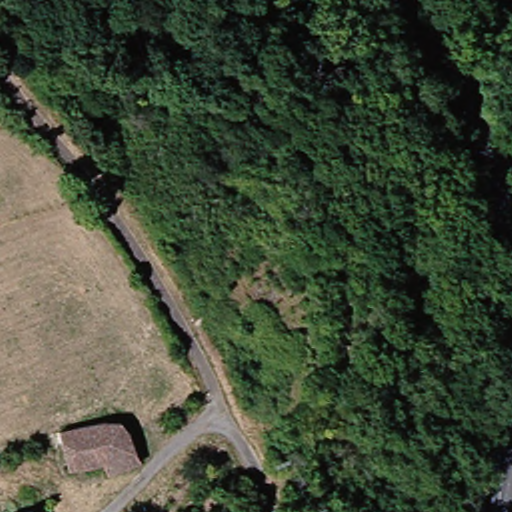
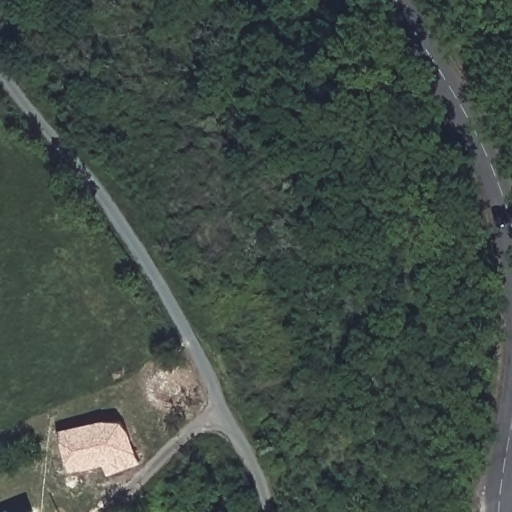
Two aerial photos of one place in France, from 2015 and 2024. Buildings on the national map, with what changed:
unchanged [(118,475),(111,460),(80,467),(67,428),(112,419),(130,426),(145,463),(118,475)]
unchanged [(42,508),(44,512),(33,512),(42,508)]

